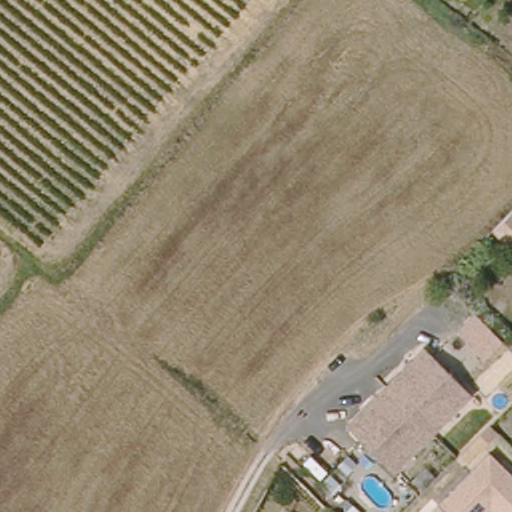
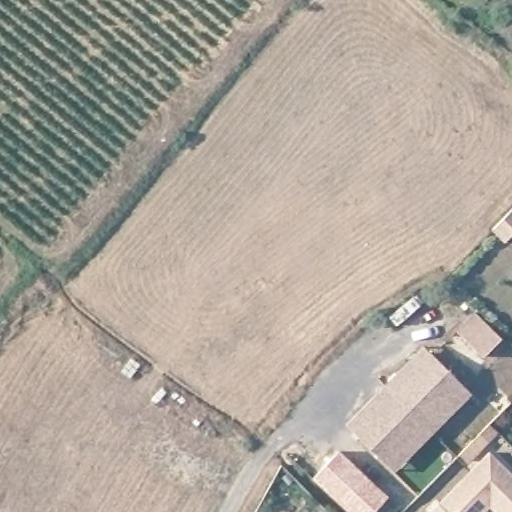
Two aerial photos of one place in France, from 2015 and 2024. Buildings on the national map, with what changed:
unchanged [(498,227),(512,211),(512,240),(498,227)]
unchanged [(487,306),(512,334),(492,352),(467,325),(487,306)]
unchanged [(454,411),(434,432),(386,386),(411,360),(424,346),(431,353),(462,383),(472,392),(454,411)]
unchanged [(386,462),(361,439),(348,425),(354,419),(386,386),(434,432),(413,453),(396,471),(386,462)]
unchanged [(500,434),(484,451),(475,443),(492,426),(500,434)]
unchanged [(441,499),(477,462),(493,446),(512,465),(512,512),(501,512),(492,503),(483,512),(455,512),(441,499)]
new [(339,450),(388,496),(373,512),(347,512),(313,479),(339,450)]
new [(455,512),(427,512),(441,499),(455,512)]

